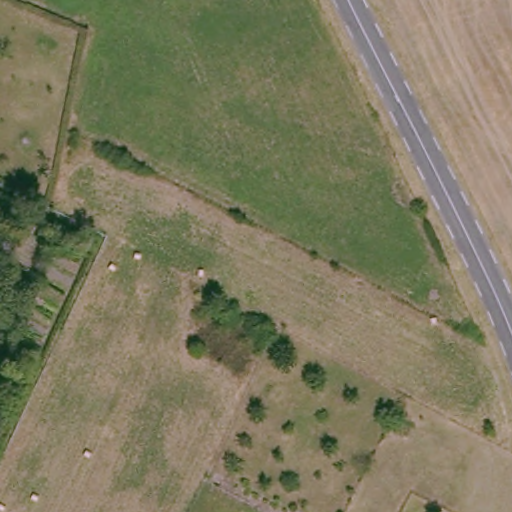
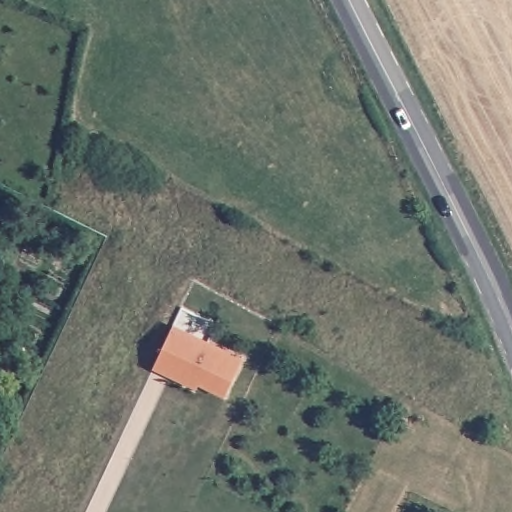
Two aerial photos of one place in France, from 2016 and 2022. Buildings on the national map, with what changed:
new [(154,368),(175,326),(244,358),(226,397),(199,385),(196,390),(154,368)]

